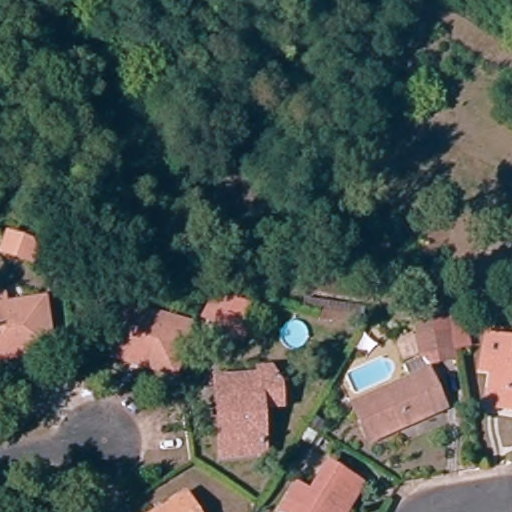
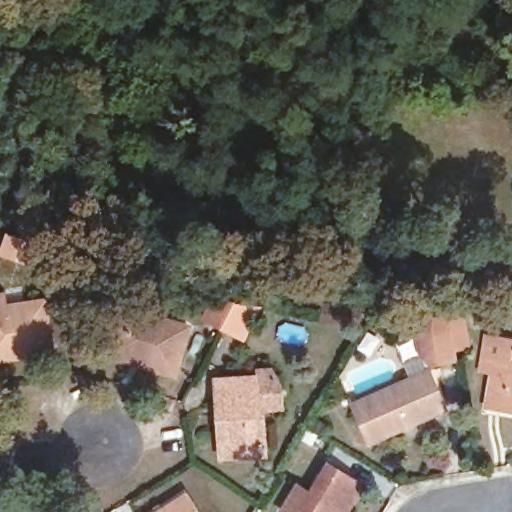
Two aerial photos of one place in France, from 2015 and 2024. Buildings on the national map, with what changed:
unchanged [(36,244),(29,264),(0,252),(7,232),(36,244)]
unchanged [(3,308),(43,303),(51,350),(27,355),(25,348),(0,352),(0,294),(1,293),(3,308)]
unchanged [(258,303),(240,338),(221,327),(205,318),(216,298),(234,300),(258,303)]
unchanged [(188,326),(182,346),(173,374),(138,364),(107,354),(121,306),(161,319),(188,326)]
unchanged [(448,312),(465,313),(466,332),(466,344),(451,343),(453,357),(419,360),(412,352),(414,324),(449,329),(448,312)]
unchanged [(484,406),(489,381),(478,380),(483,344),(509,348),(512,349),(512,420),(483,415),(484,406)]
unchanged [(367,442),(349,405),(410,374),(423,368),(429,380),(441,405),(367,442)]
unchanged [(218,461),(218,445),(222,445),(221,386),(260,385),(260,377),(270,377),(282,389),(283,416),(260,416),(261,461),(218,461)]
unchanged [(284,508),(295,492),(307,498),(325,470),(360,490),(347,512),(281,512),(284,508)]
unchanged [(182,496),(193,512),(159,512),(182,496)]

